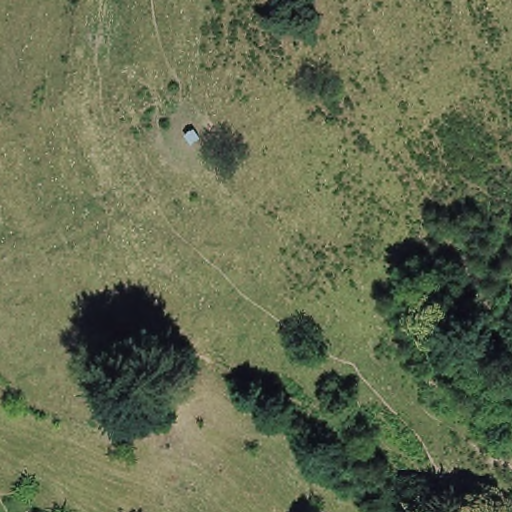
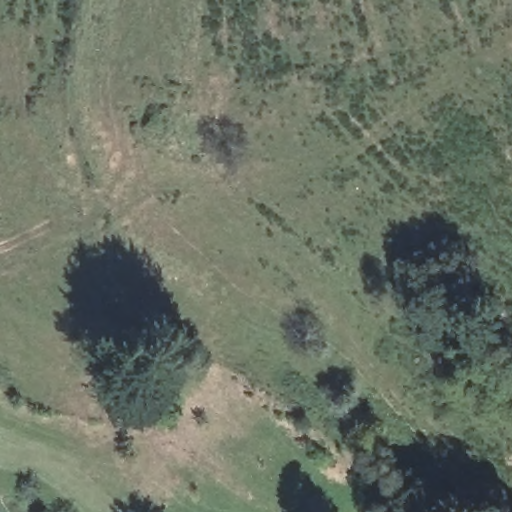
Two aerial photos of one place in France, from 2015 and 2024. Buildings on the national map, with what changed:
[]

